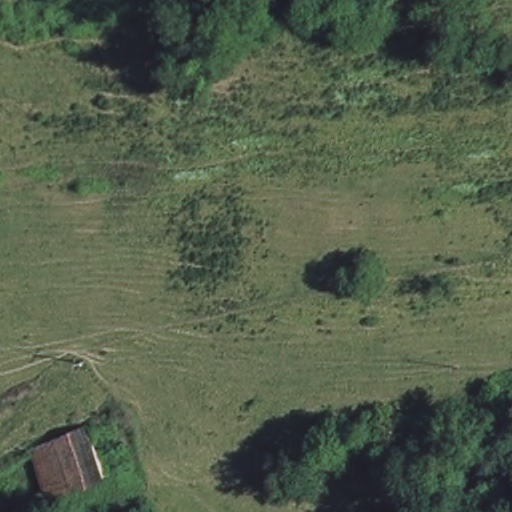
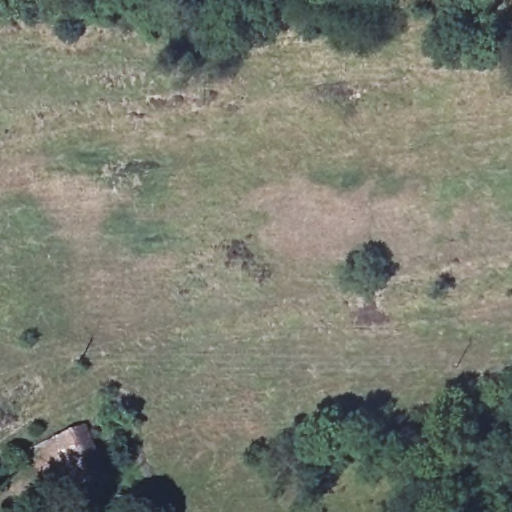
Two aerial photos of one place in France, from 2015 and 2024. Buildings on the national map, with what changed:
unchanged [(104,465),(67,481),(56,447),(93,430),(104,465)]
unchanged [(67,481),(41,493),(30,460),(56,447),(67,481)]

